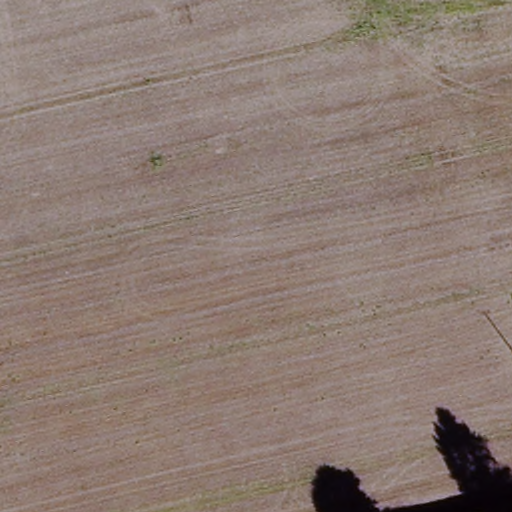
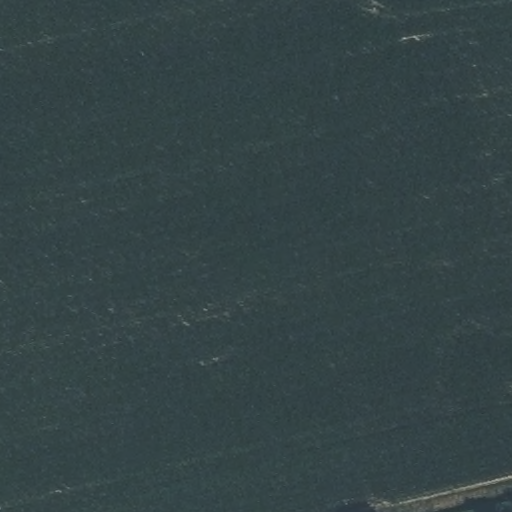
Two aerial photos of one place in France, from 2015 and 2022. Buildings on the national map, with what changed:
[]

